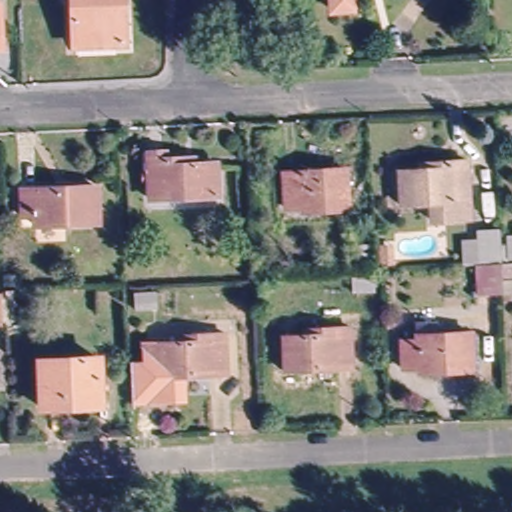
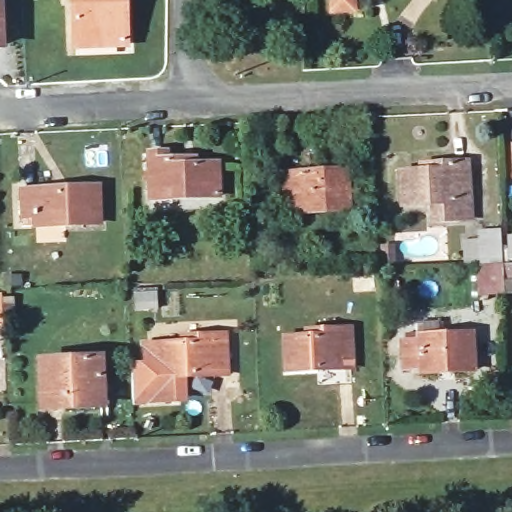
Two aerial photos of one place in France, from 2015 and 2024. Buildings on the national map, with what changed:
unchanged [(74,0),(123,0),(124,25),(125,49),(75,51),(74,0)]
unchanged [(332,10),(332,0),(351,0),(352,9),(332,10)]
unchanged [(0,47),(0,26),(1,46),(0,47)]
unchanged [(151,200),(150,181),(143,181),(143,174),(150,174),(149,154),(165,153),(165,160),(186,159),(195,159),(195,165),(217,164),(218,197),(151,200)]
unchanged [(432,221),(431,204),(402,205),(400,172),(424,170),(423,164),(432,164),(467,162),(470,219),(432,221)]
unchanged [(302,208),(287,209),(285,174),(346,170),(348,209),(310,212),(302,213),(302,208)]
unchanged [(98,224),(36,227),(36,217),(22,217),(21,190),(97,187),(98,224)]
unchanged [(507,299),(487,300),(481,300),(480,271),(468,272),(467,247),(482,245),(481,237),(502,235),(505,269),(512,269),(512,282),(506,282),(506,284),(512,284),(512,298),(507,298),(507,299)]
unchanged [(512,264),(511,242),(512,242),(512,263),(512,264)]
unchanged [(382,265),(381,253),(381,247),(393,246),(393,252),(395,264),(382,265)]
unchanged [(375,292),(352,293),(352,277),(373,275),(375,292)]
unchanged [(17,285),(1,287),(0,277),(17,276),(17,285)]
unchanged [(157,309),(136,310),(135,294),(156,293),(157,309)]
unchanged [(473,371),(419,374),(419,369),(404,369),(402,342),(417,341),(417,337),(416,337),(416,324),(438,323),(439,335),(471,334),(473,371)]
unchanged [(276,372),(274,338),(296,337),(296,331),(303,330),(342,329),(343,368),(276,372)]
unchanged [(176,332),(184,332),(222,330),(223,369),(184,371),(156,373),(154,339),(176,338),(176,332)]
unchanged [(143,363),(142,339),(154,339),(156,373),(184,371),(187,403),(147,405),(133,406),(131,363),(143,363)]
unchanged [(102,396),(42,399),(40,352),(99,349),(102,396)]

